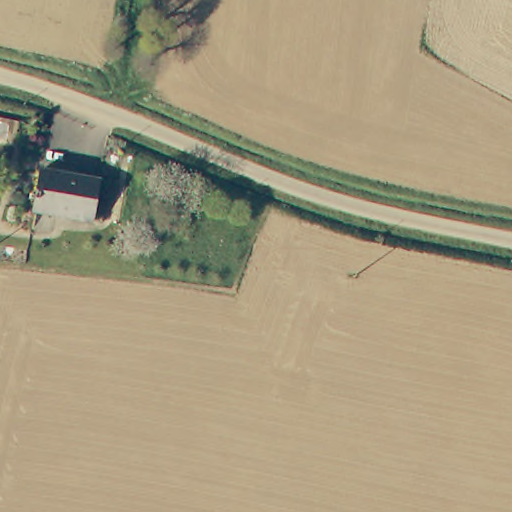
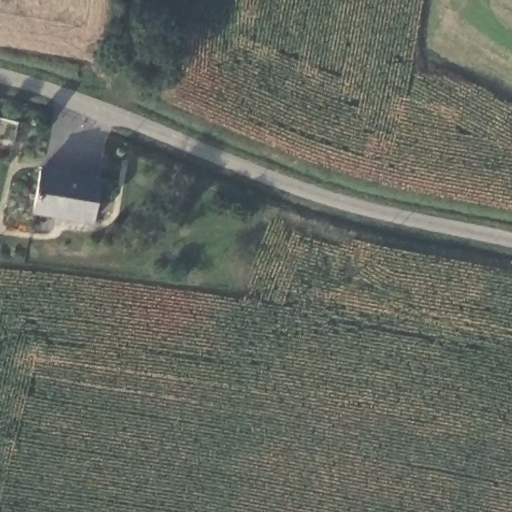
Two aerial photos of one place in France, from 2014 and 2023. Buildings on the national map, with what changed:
unchanged [(93,220),(34,210),(40,172),(99,181),(93,220)]

